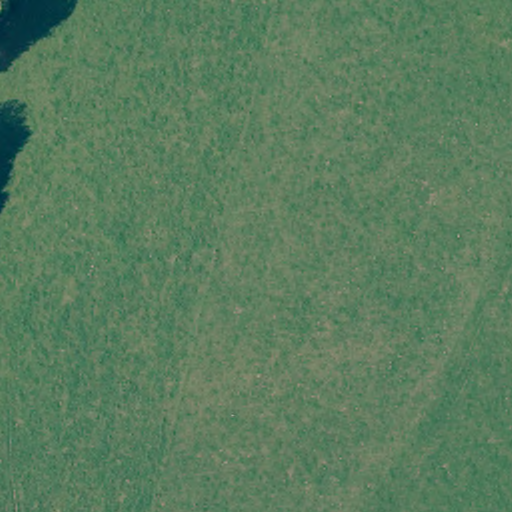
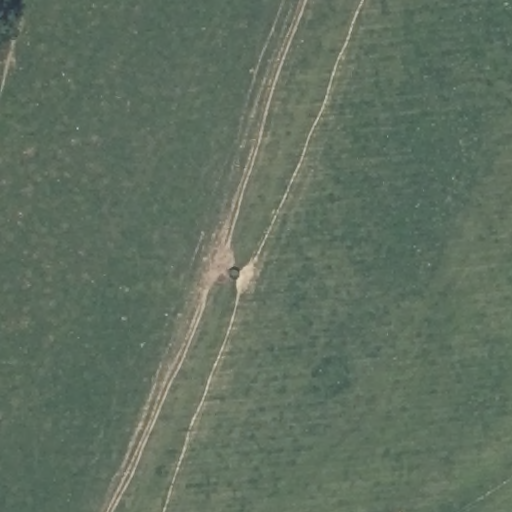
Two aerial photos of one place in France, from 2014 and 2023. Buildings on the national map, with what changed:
[]

